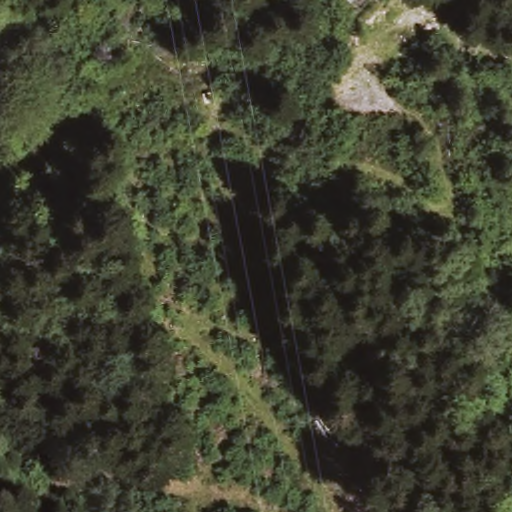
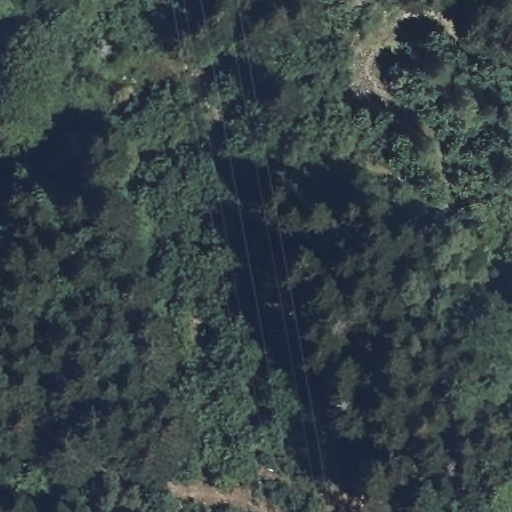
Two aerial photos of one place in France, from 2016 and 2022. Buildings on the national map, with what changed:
[]

